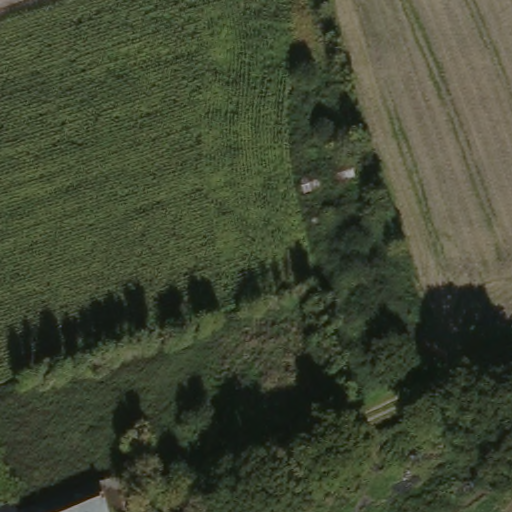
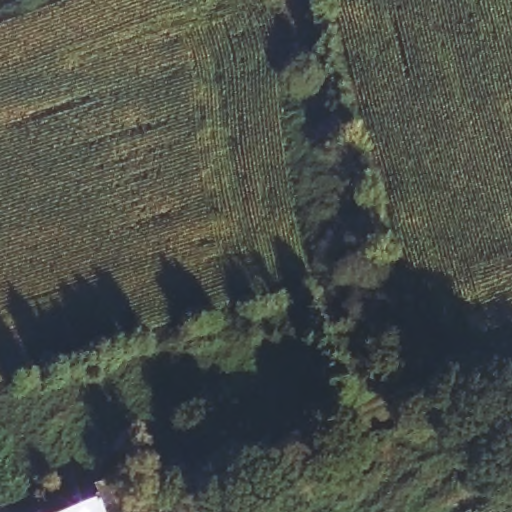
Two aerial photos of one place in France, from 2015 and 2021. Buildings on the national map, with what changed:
unchanged [(114,496),(126,492),(134,512),(40,512),(110,487),(114,496)]
unchanged [(6,511),(7,512),(2,512),(6,511)]

